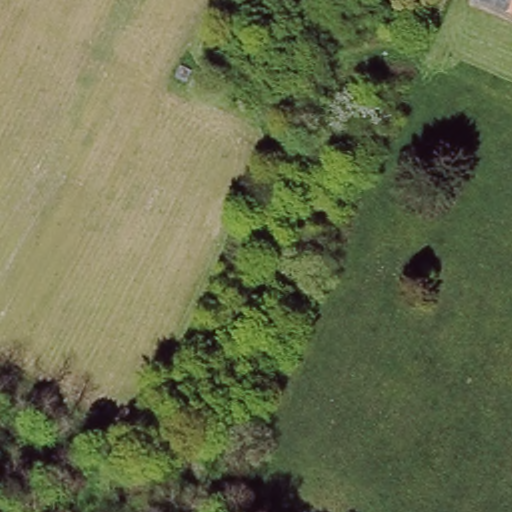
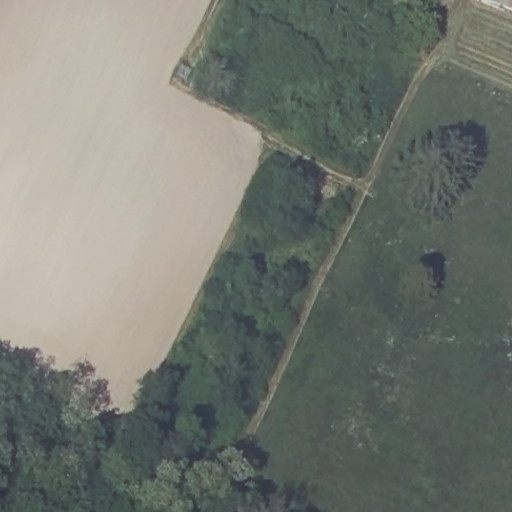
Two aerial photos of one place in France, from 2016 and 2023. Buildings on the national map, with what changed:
unchanged [(476,0),(512,0),(512,15),(476,0)]

